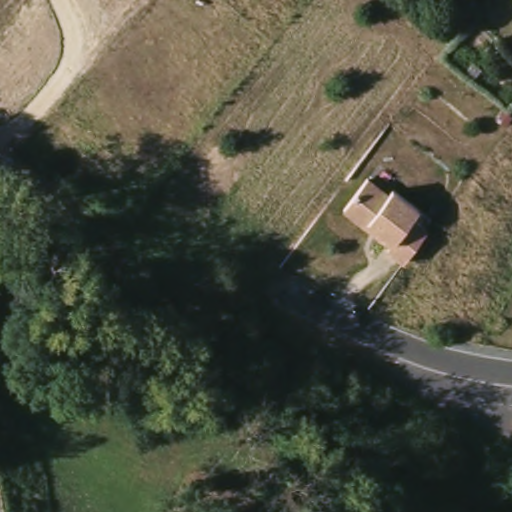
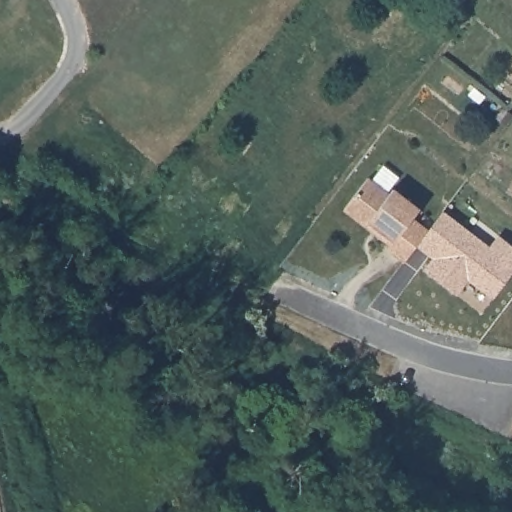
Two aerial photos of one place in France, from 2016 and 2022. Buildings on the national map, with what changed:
unchanged [(343,208),(366,178),(387,194),(392,188),(418,209),(410,218),(427,231),(424,235),(404,262),(387,249),(390,245),(365,226),(343,208)]
new [(427,231),(443,211),(490,246),(497,235),(512,246),(512,274),(493,299),(469,280),(458,295),(424,269),(430,258),(416,247),(424,235),(427,231)]

